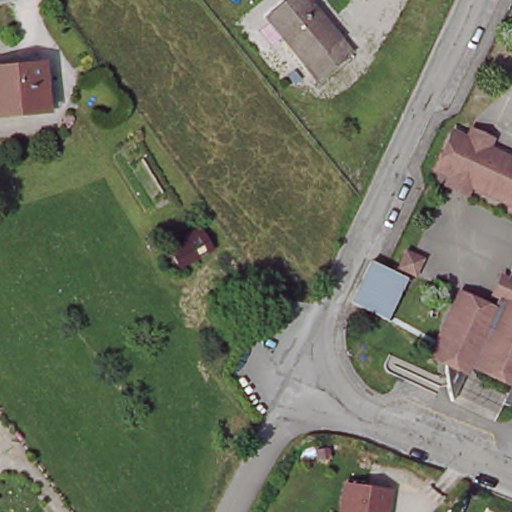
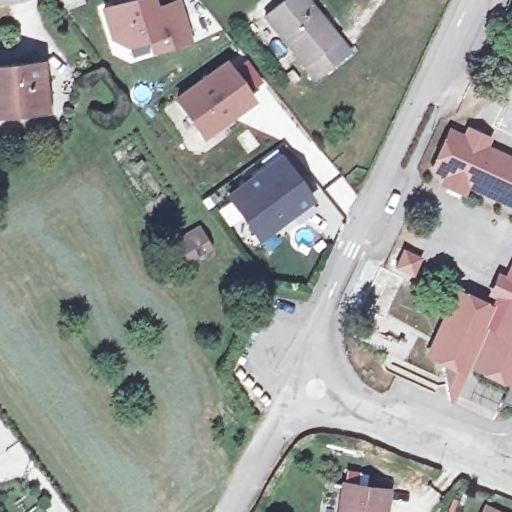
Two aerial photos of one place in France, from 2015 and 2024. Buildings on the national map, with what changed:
new [(145,40),(122,48),(108,40),(99,6),(119,0),(153,0),(155,5),(173,0),(178,0),(190,41),(150,54),(145,40)]
unchanged [(260,21),(285,0),(298,0),(342,55),(309,81),(260,21)]
new [(201,139),(171,96),(225,59),(255,103),(201,139)]
unchanged [(40,68),(46,68),(47,84),(42,85),(44,104),(0,108),(0,64),(39,61),(40,68)]
unchanged [(461,178),(457,186),(438,178),(442,169),(427,162),(443,126),(459,133),(462,125),(482,134),(478,142),(512,158),(512,202),(461,178)]
new [(256,243),(222,194),(280,153),(314,202),(256,243)]
unchanged [(197,233),(206,250),(180,265),(170,247),(197,233)]
unchanged [(512,397),(502,399),(496,396),(504,377),(469,361),(486,324),(478,321),(445,393),(441,379),(439,368),(438,355),(430,351),(424,349),(431,332),(446,299),(452,287),(485,303),(492,289),(499,273),(512,245),(512,364),(511,367),(512,368),(512,396),(512,397)]
unchanged [(419,257),(412,273),(397,265),(404,250),(419,257)]
unchanged [(400,280),(377,319),(349,305),(366,264),(400,280)]
unchanged [(380,512),(338,512),(342,482),(384,488),(380,512)]

